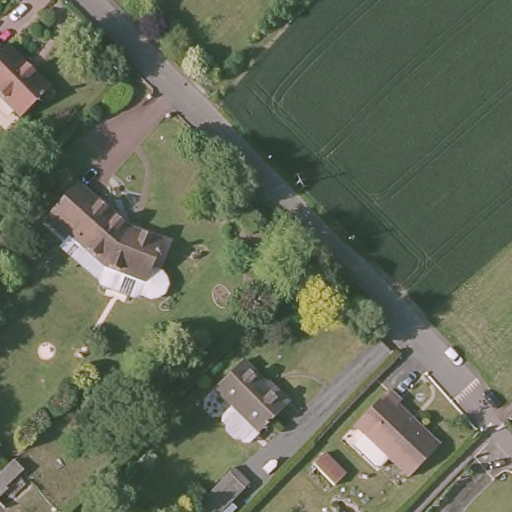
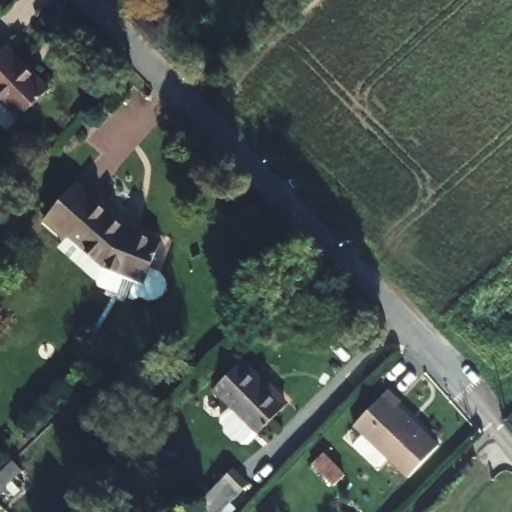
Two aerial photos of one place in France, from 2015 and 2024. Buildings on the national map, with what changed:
unchanged [(2,57),(10,49),(53,93),(24,123),(0,99),(0,55),(2,57)]
unchanged [(68,239),(46,219),(52,212),(78,183),(85,189),(121,221),(127,226),(164,243),(153,270),(162,274),(167,284),(162,296),(152,301),(142,297),(134,300),(104,288),(100,280),(62,245),(68,239)]
unchanged [(247,361),(290,405),(262,432),(254,440),(248,440),(245,436),(239,436),(232,430),(232,424),(229,420),(229,414),(237,407),(219,388),(247,361)]
unchanged [(416,417),(412,421),(441,449),(410,482),(390,463),(383,472),(377,472),(354,451),(365,439),(355,430),(390,393),(416,417)]
unchanged [(337,490),(314,466),(326,454),(349,478),(337,490)]
unchanged [(245,460),(261,475),(226,512),(225,512),(209,497),(245,460)]

